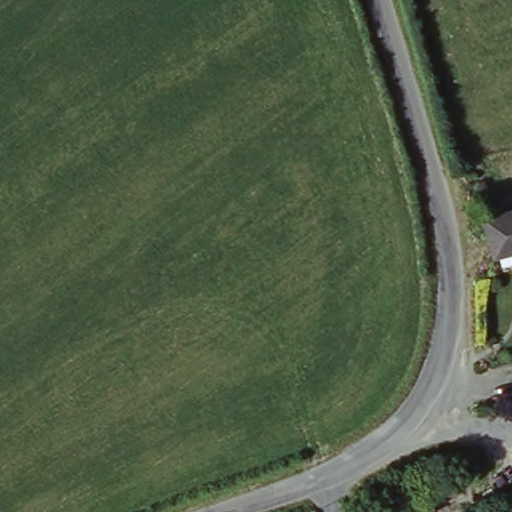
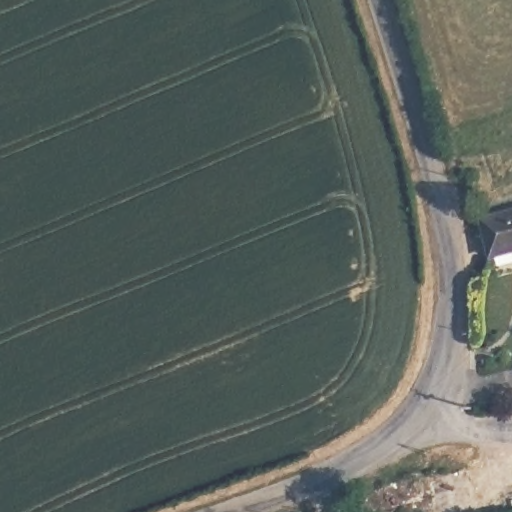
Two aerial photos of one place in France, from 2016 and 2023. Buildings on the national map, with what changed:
unchanged [(512,211),(512,252),(494,256),(484,219),(512,211)]
unchanged [(433,500),(384,512),(365,512),(360,501),(424,477),(433,500)]

